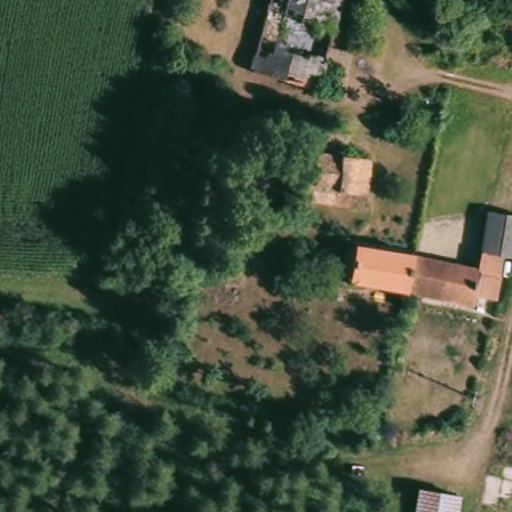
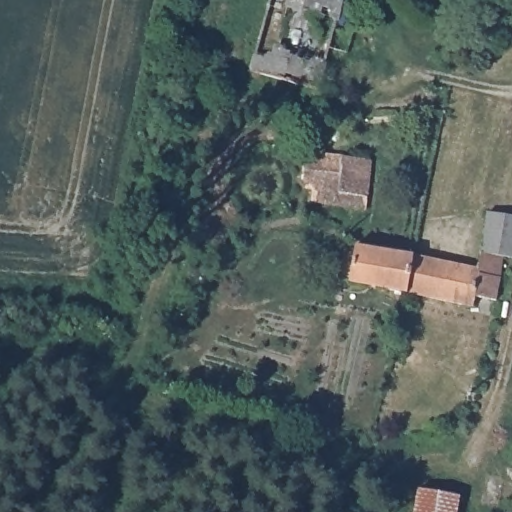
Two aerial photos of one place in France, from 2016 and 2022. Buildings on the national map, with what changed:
unchanged [(342,12),(358,17),(346,61),(329,56),(317,94),(251,72),(273,0),(333,0),(344,4),(342,12)]
unchanged [(372,165),(366,212),(337,210),(338,194),(305,190),(309,160),(372,165)]
unchanged [(492,210),(512,215),(512,257),(506,256),(504,266),(496,301),(487,300),(483,320),(464,317),(466,306),(410,298),(418,258),(483,267),(492,210)]
unchanged [(412,257),(418,258),(410,298),(399,296),(352,290),(357,250),(412,257)]
unchanged [(420,313),(416,331),(399,328),(402,310),(420,313)]
unchanged [(464,500),(462,512),(418,512),(422,492),(464,500)]

